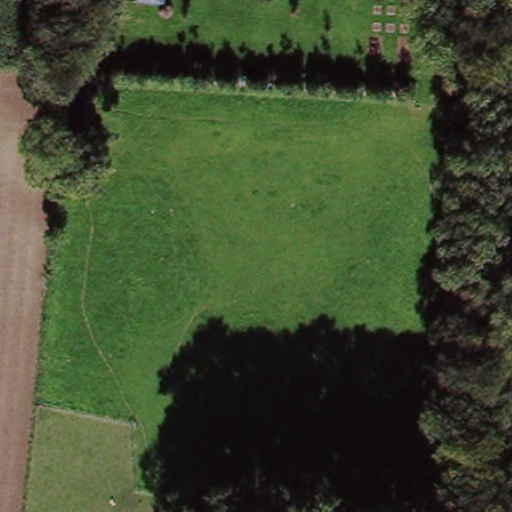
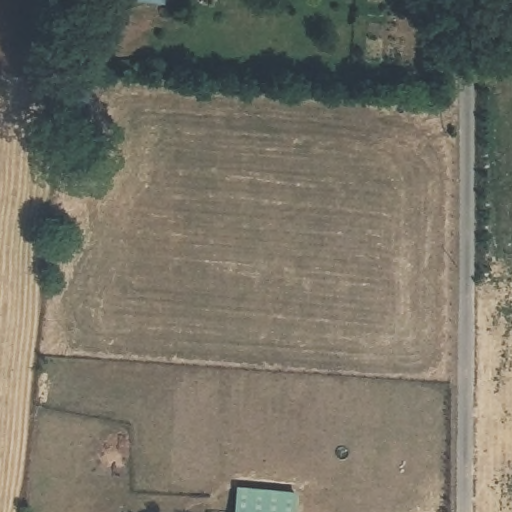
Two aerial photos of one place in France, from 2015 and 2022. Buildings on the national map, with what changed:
unchanged [(162,1),(131,0),(162,0),(162,1)]
new [(297,492),(295,512),(235,512),(237,486),(297,492)]

